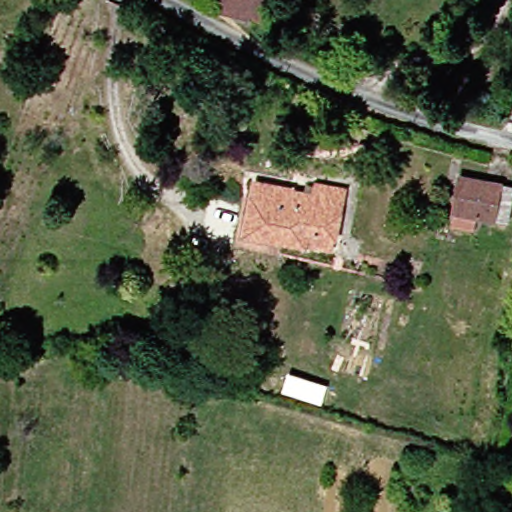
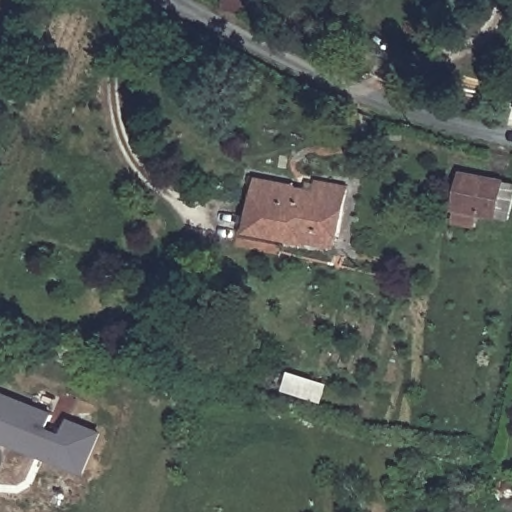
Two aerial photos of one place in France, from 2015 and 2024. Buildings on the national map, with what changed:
unchanged [(225,9),(226,0),(273,0),(271,16),(225,9)]
unchanged [(479,220),(476,233),(453,228),(463,179),(512,190),(512,216),(510,227),(479,220)]
unchanged [(318,183),(347,189),(334,249),(249,232),(259,180),(316,192),(318,183)]
new [(0,441),(0,397),(49,415),(42,431),(57,437),(64,421),(96,434),(81,473),(44,458),(34,454),(0,441)]

